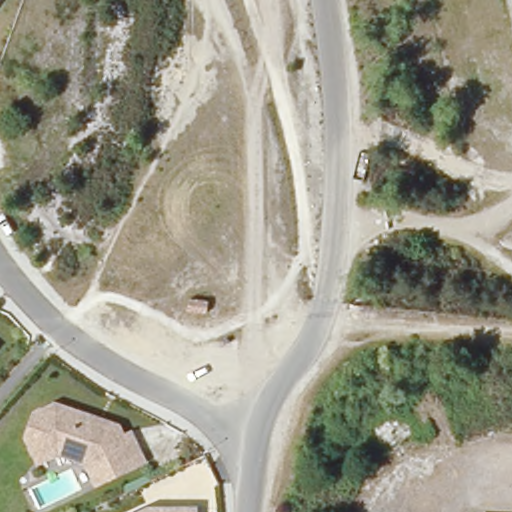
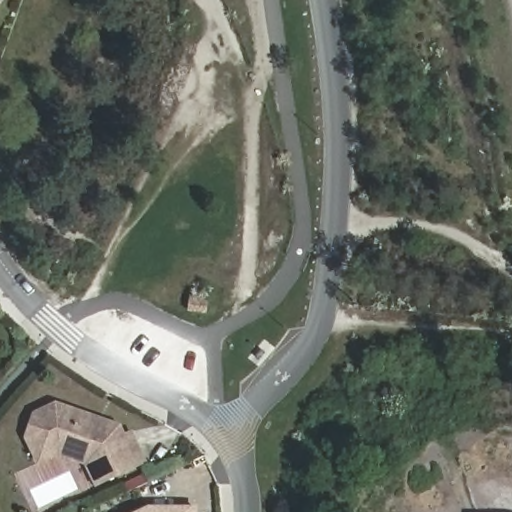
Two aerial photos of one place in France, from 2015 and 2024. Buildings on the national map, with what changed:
unchanged [(56,405),(83,413),(86,420),(104,425),(105,423),(121,428),(126,437),(146,462),(99,485),(82,453),(70,449),(40,464),(27,439),(35,415),(56,405)]
unchanged [(149,510),(196,510),(196,512),(144,512),(149,510)]

